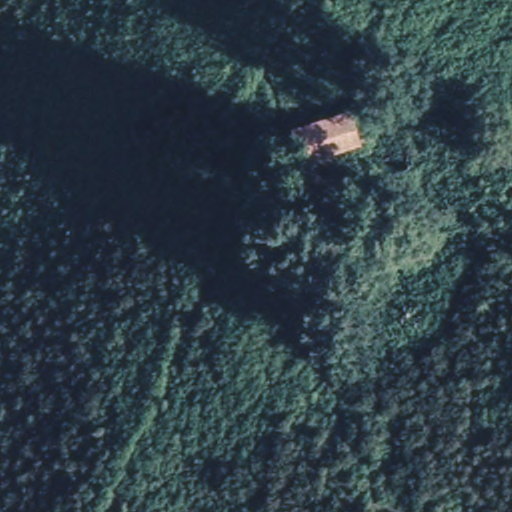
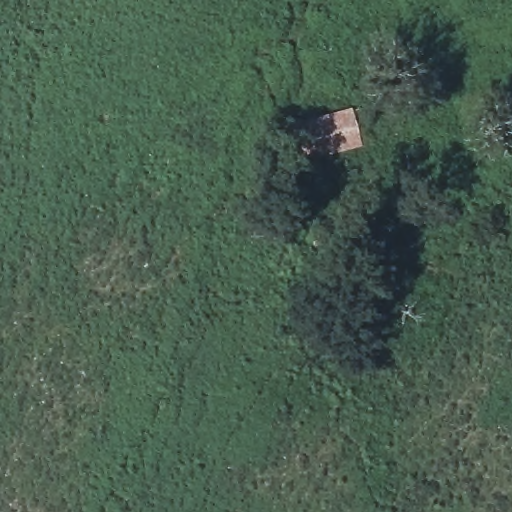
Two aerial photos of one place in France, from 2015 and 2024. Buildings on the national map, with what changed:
unchanged [(349,111),(359,148),(299,164),(292,125),(349,111)]

